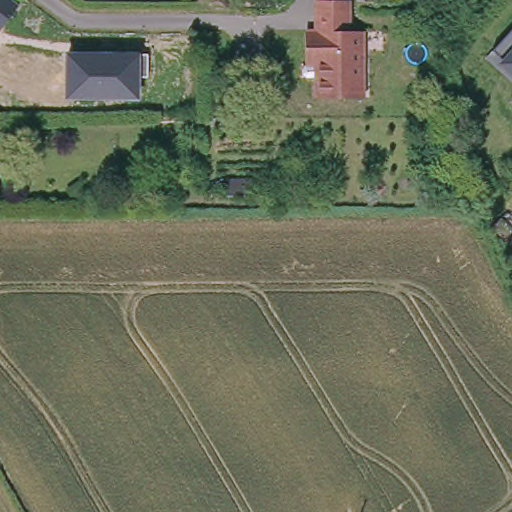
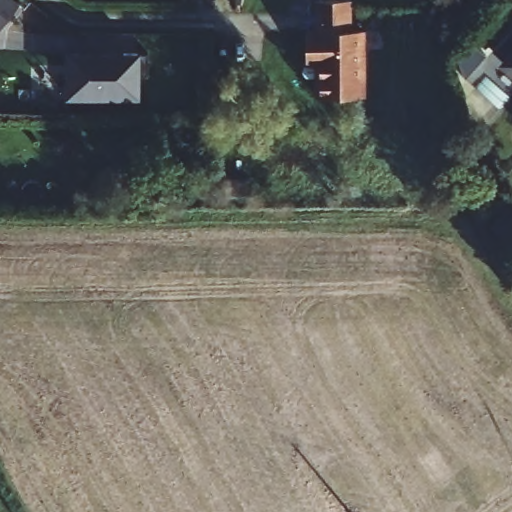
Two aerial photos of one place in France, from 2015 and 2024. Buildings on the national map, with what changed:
unchanged [(0,30),(0,0),(13,0),(19,5),(0,30)]
unchanged [(314,93),(314,61),(305,61),(305,24),(313,24),(313,6),(313,0),(351,0),(351,5),(352,25),(365,26),(366,93),(314,93)]
unchanged [(504,60),(494,50),(512,30),(512,75),(500,64),(504,60)]
unchanged [(147,78),(140,79),(140,99),(66,99),(66,52),(139,53),(147,55),(147,78)]
unchanged [(252,179),(253,196),(222,196),(222,179),(252,179)]

